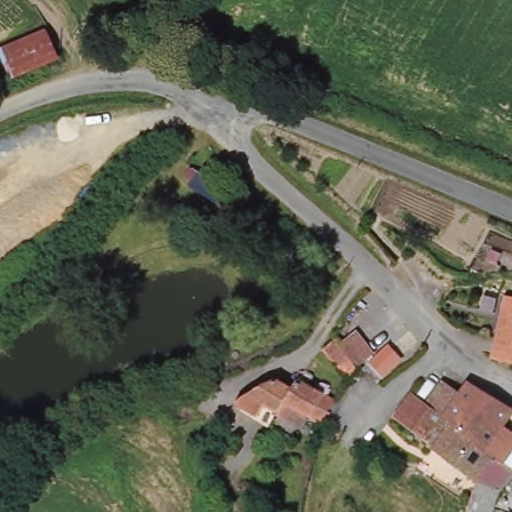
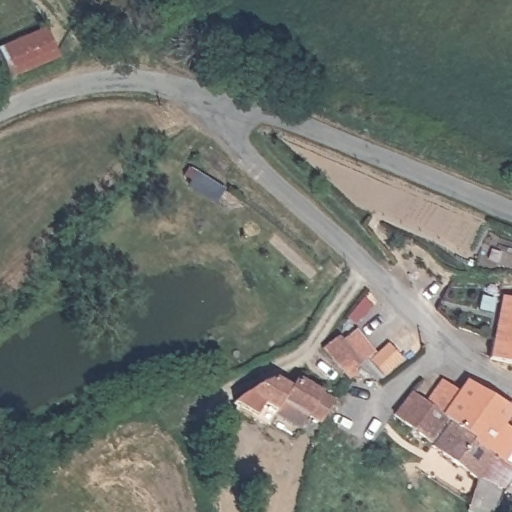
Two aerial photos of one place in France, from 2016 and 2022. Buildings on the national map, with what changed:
unchanged [(0,73),(0,48),(46,33),(55,62),(1,79),(0,73)]
unchanged [(502,295),(512,298),(512,363),(499,359),(482,355),(502,295)]
unchanged [(302,363),(312,356),(366,315),(392,346),(344,387),(336,379),(325,388),(302,363)]
unchanged [(242,398),(254,389),(266,383),(275,379),(286,389),(292,378),(334,407),(319,426),(318,430),(299,415),(289,429),(262,411),(252,422),(234,406),(242,398)]
unchanged [(479,486),(483,479),(475,475),(458,467),(417,441),(392,423),(408,400),(422,409),(438,386),(454,395),(461,386),(508,416),(501,427),(512,434),(512,469),(501,489),(492,507),(472,496),(479,486)]

